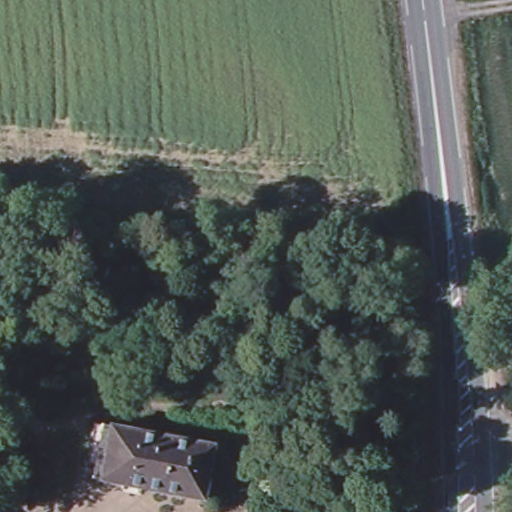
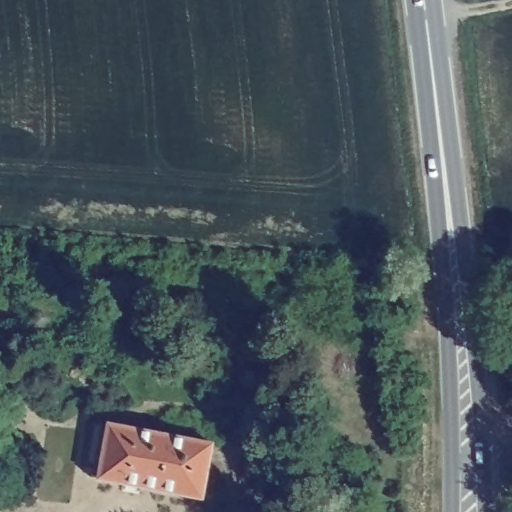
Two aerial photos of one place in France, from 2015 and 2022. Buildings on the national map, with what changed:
unchanged [(93,482),(105,426),(208,446),(198,500),(93,482)]

